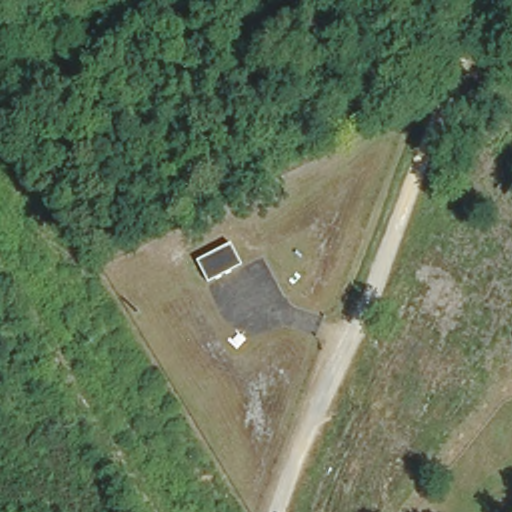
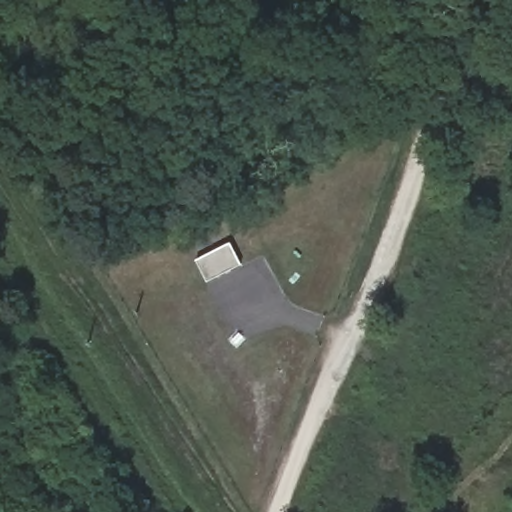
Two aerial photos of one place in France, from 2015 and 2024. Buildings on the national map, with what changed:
unchanged [(229,239),(241,260),(208,277),(198,255),(229,239)]

